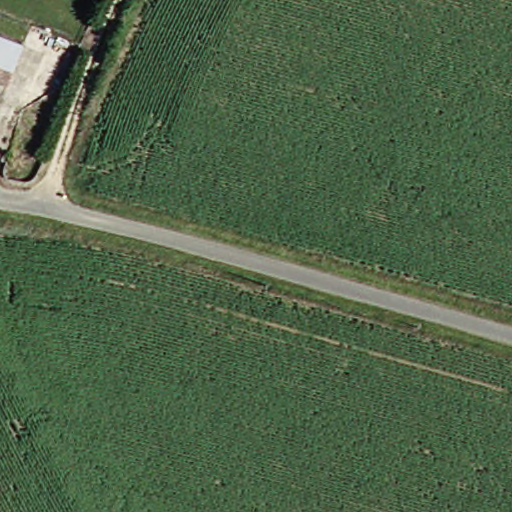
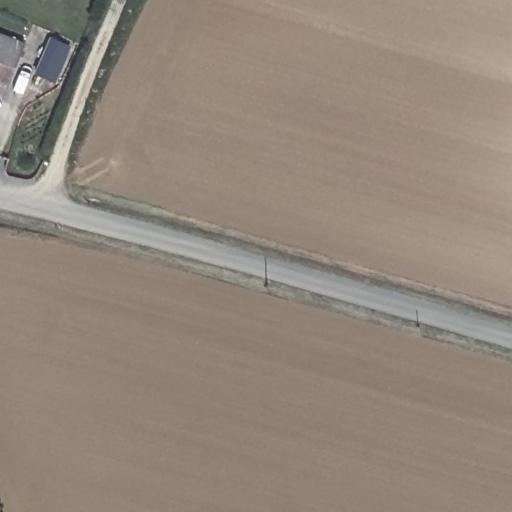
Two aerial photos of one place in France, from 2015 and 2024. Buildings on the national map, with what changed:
unchanged [(29,42),(19,69),(14,82),(0,77),(0,32),(29,42)]

